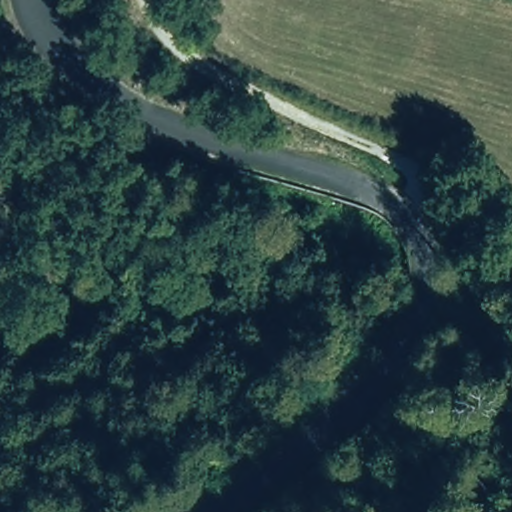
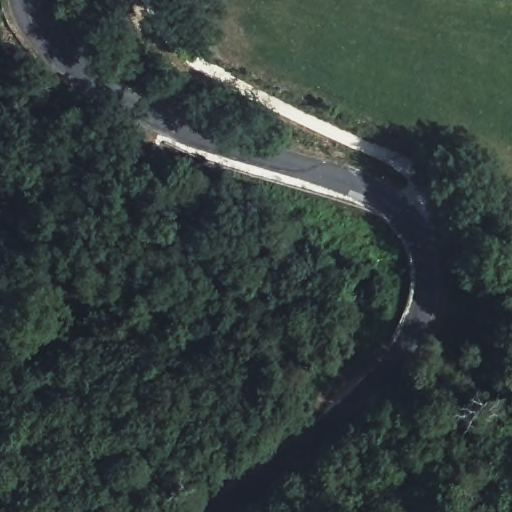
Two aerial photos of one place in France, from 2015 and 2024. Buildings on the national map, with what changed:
[]

